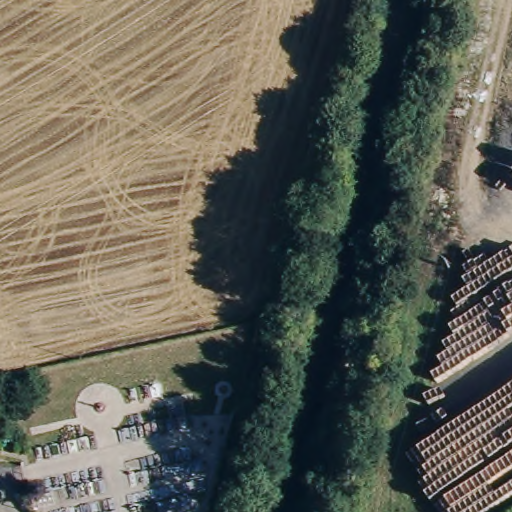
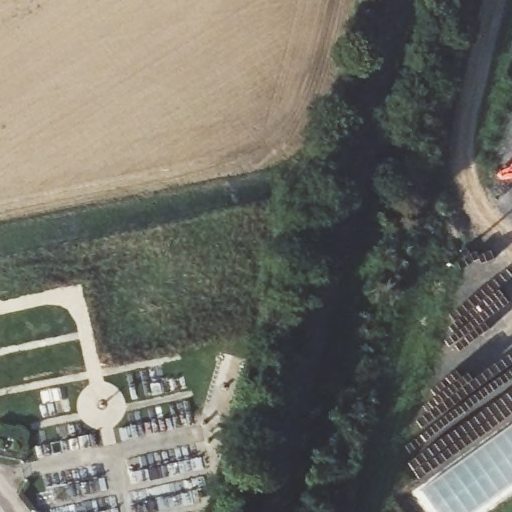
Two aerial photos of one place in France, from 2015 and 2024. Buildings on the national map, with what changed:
new [(471,512),(437,512),(422,490),(512,426),(512,483),(471,512)]

